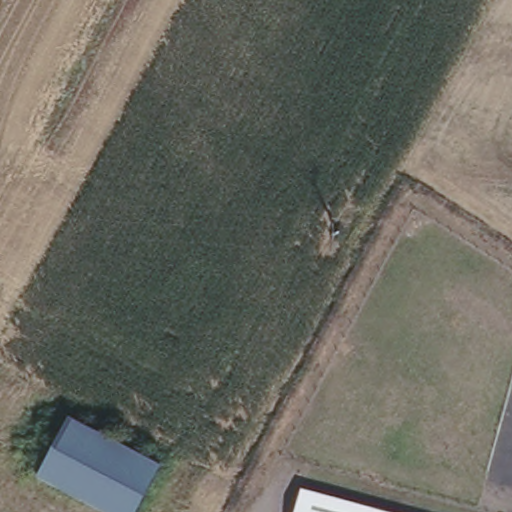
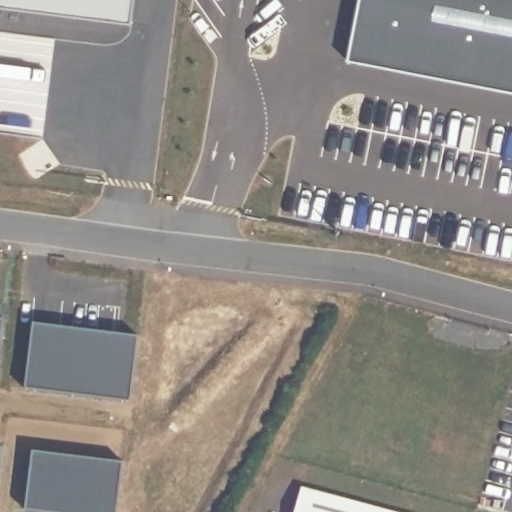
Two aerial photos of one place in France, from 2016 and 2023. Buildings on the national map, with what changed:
new [(0,24),(0,0),(136,0),(131,37),(0,24)]
new [(359,0),(512,0),(512,91),(348,60),(359,0)]
new [(3,321),(3,322),(0,352),(0,320),(3,321)]
new [(130,404),(24,391),(33,325),(139,337),(130,404)]
demolished [(38,472),(72,414),(164,458),(135,512),(112,512),(38,472)]
new [(0,468),(0,448),(2,448),(0,468)]
new [(117,512),(39,512),(25,511),(32,452),(123,463),(117,512)]
unchanged [(407,512),(293,512),(300,484),(407,512)]

